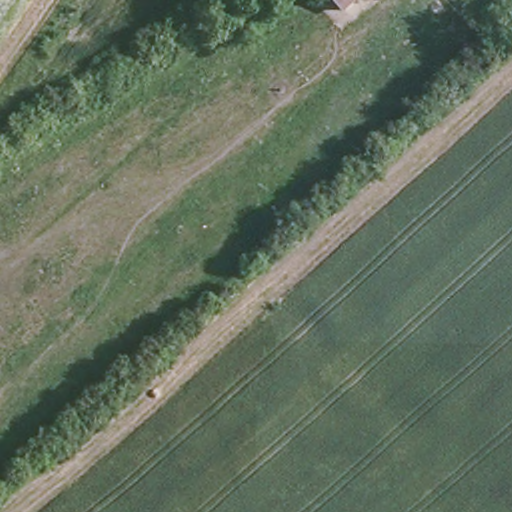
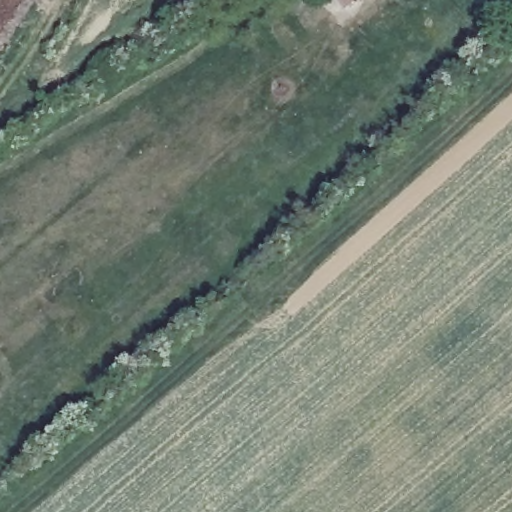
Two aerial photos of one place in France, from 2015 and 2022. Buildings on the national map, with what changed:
unchanged [(344,8),(336,0),(353,0),(344,8)]

